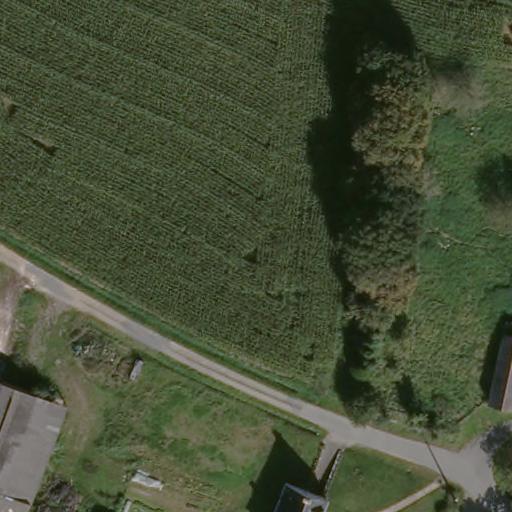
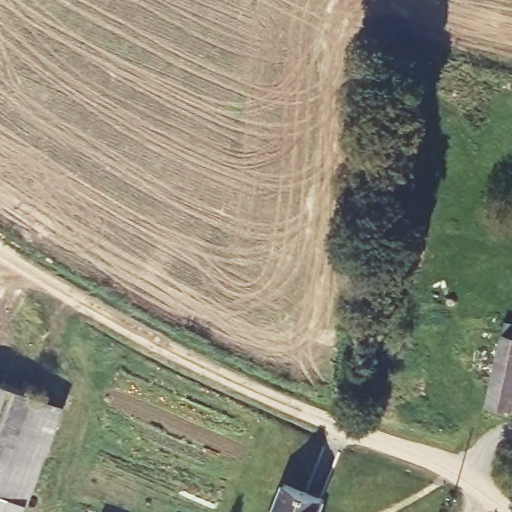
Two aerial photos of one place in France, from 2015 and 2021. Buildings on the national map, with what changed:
unchanged [(510,413),(482,410),(502,322),(512,324),(512,402),(510,413)]
unchanged [(0,388),(26,398),(0,475),(0,388)]
unchanged [(57,409),(21,512),(0,512),(0,475),(26,398),(57,409)]
unchanged [(326,498),(320,512),(273,512),(285,482),(326,498)]

